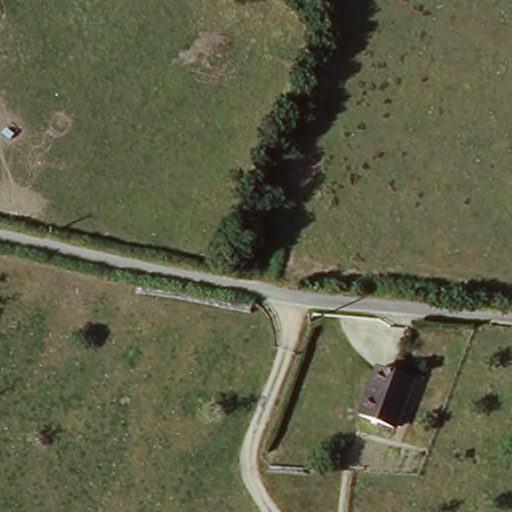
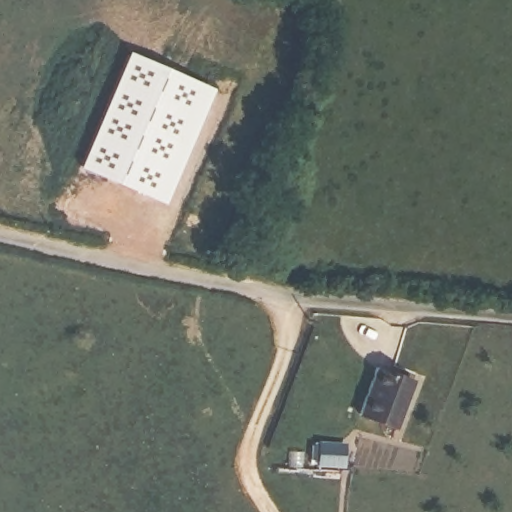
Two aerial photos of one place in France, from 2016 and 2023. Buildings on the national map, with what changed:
new [(129,50),(214,88),(162,201),(79,165),(129,50)]
unchanged [(408,377),(394,427),(358,416),(372,368),(408,377)]
new [(312,442),(347,442),(347,468),(310,466),(312,442)]

